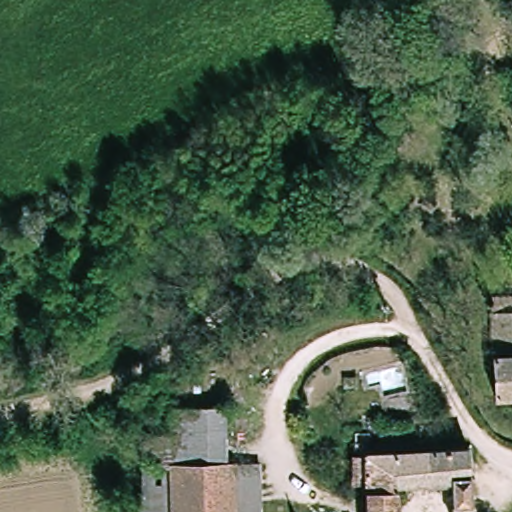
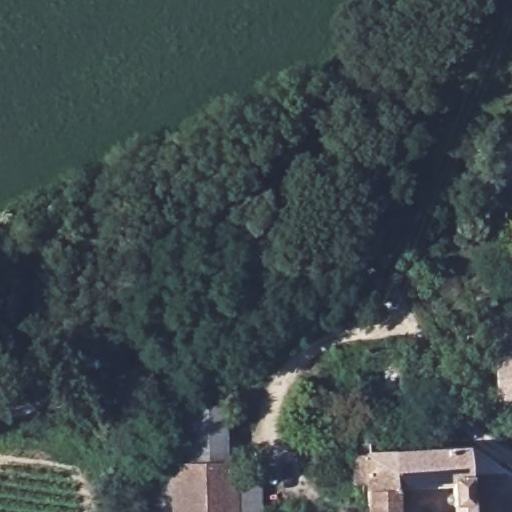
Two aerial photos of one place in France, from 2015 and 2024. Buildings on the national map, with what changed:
unchanged [(512,310),(512,355),(497,356),(494,311),(512,310)]
unchanged [(512,399),(499,400),(497,356),(512,355),(512,399)]
unchanged [(169,410),(226,408),(227,465),(238,465),(240,512),(173,512),(170,434),(169,410)]
unchanged [(141,436),(170,434),(173,512),(141,512),(141,458),(141,436)]
unchanged [(457,512),(456,478),(399,482),(400,512),(371,512),(369,452),(469,447),(474,512),(457,512)]

